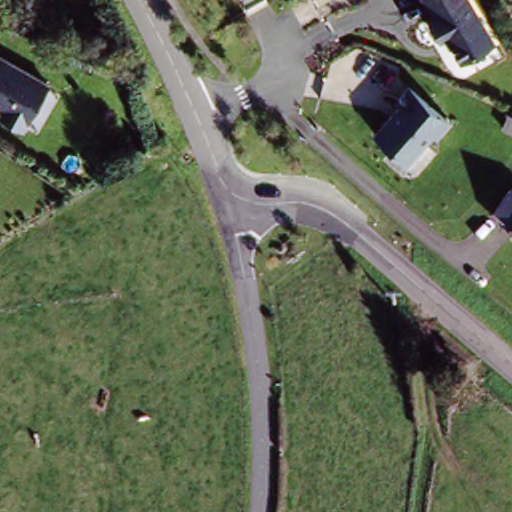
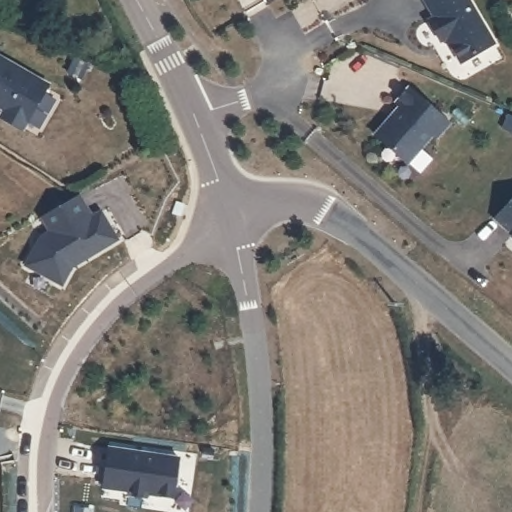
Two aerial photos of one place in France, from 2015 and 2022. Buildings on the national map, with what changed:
unchanged [(495,38),(464,56),(448,29),(442,33),(431,12),(436,9),(431,0),(472,0),(495,38)]
unchanged [(60,92),(29,135),(6,119),(10,111),(0,105),(0,52),(60,92)]
unchanged [(398,104),(394,101),(409,85),(412,87),(448,118),(453,123),(438,141),(433,137),(408,166),(372,135),(398,104)]
new [(80,191),(91,210),(99,206),(116,235),(70,262),(58,281),(23,260),(40,231),(50,226),(42,214),(80,191)]
unchanged [(512,212),(512,228),(503,220),(512,212)]
new [(111,446),(179,457),(173,496),(150,492),(149,496),(130,493),(130,489),(105,485),(111,446)]
new [(76,512),(77,502),(102,506),(101,512),(76,512)]

